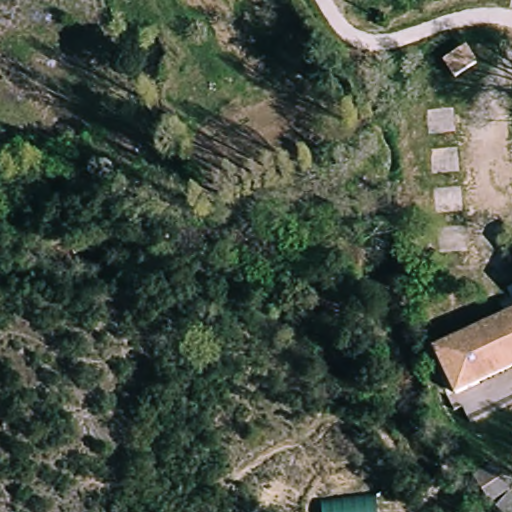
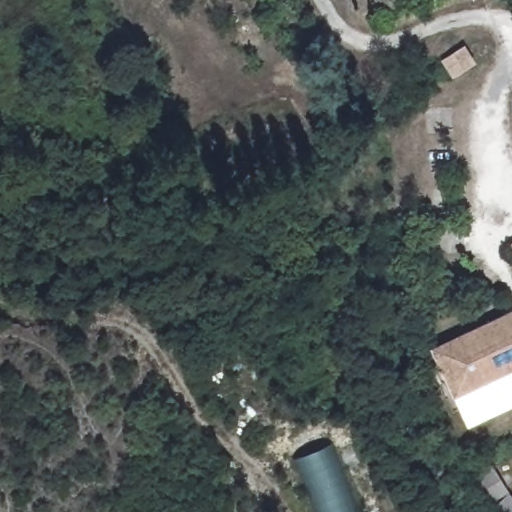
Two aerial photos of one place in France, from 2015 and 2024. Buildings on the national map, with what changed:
new [(512,243),(512,249),(509,245),(512,243)]
unchanged [(426,338),(512,307),(512,362),(441,386),(426,338)]
unchanged [(512,379),(512,399),(461,418),(456,420),(452,408),(449,401),(512,379)]
new [(354,512),(316,512),(296,459),(329,446),(354,512)]
unchanged [(512,494),(512,512),(495,512),(486,505),(470,480),(494,463),(512,493),(512,494)]
demolished [(319,512),(318,502),(374,494),(376,512),(319,512)]

